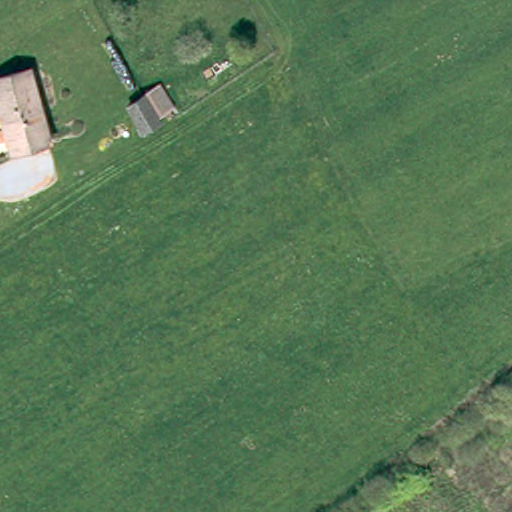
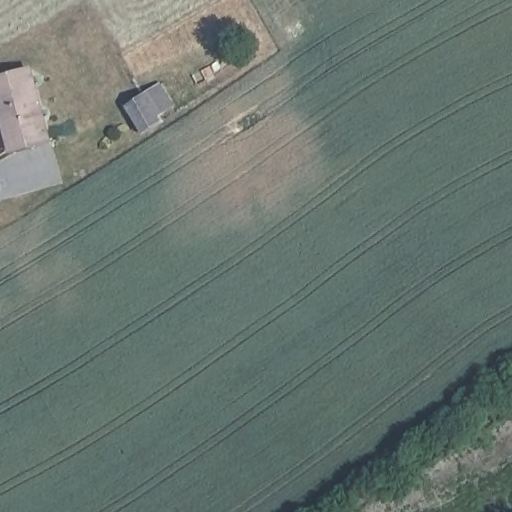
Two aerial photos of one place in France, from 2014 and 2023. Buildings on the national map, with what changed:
unchanged [(49,140),(12,151),(0,107),(0,77),(30,69),(49,140)]
unchanged [(129,112),(146,101),(163,128),(145,139),(129,112)]

